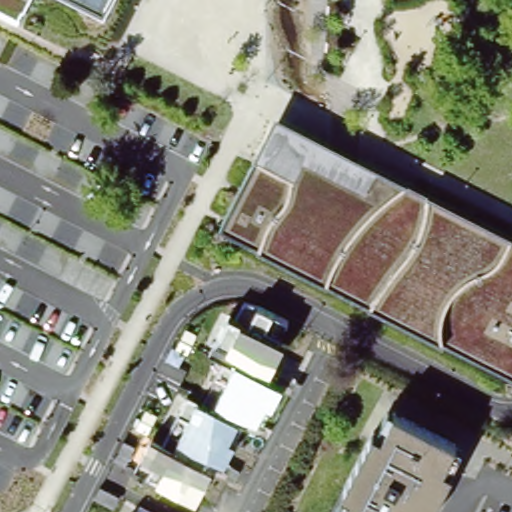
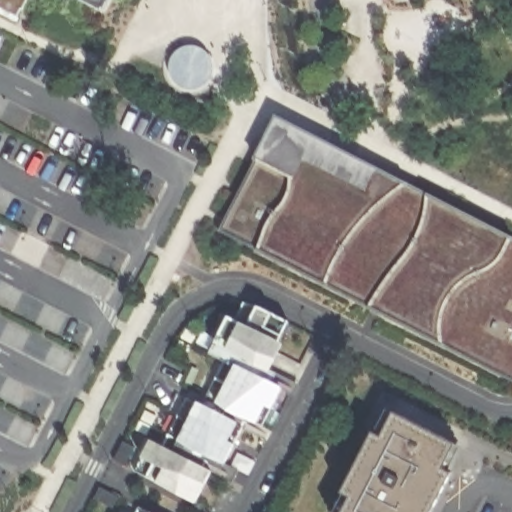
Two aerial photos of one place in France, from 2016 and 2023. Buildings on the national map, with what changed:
unchanged [(16,17),(0,9),(0,0),(26,0),(16,17)]
unchanged [(103,5),(91,0),(105,0),(103,5)]
unchanged [(371,303),(328,281),(261,246),(224,225),(256,158),(276,115),(404,181),(428,194),(509,236),(512,237),(512,376),(443,339),(371,303)]
unchanged [(142,456),(151,438),(164,444),(171,433),(178,437),(197,399),(213,406),(236,364),(210,354),(216,341),(227,314),(241,319),(246,323),(256,305),(271,311),(289,322),(283,337),(266,372),(286,385),(276,411),(266,408),(259,423),(241,418),(221,456),(226,460),(223,467),(236,473),(231,481),(208,471),(194,501),(155,479),(136,470),(142,456)]
unchanged [(389,415),(452,447),(441,470),(449,474),(430,512),(340,512),(346,499),(338,495),(369,435),(376,439),(389,415)]

